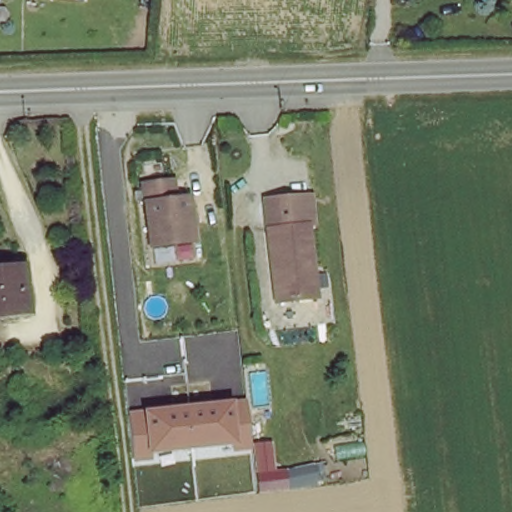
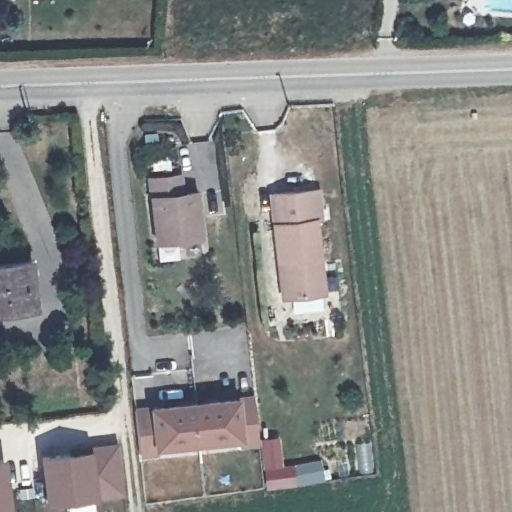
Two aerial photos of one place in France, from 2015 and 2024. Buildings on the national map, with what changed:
unchanged [(178,175),(181,194),(194,192),(198,236),(156,241),(148,178),(178,175)]
unchanged [(284,300),(276,227),(279,226),(276,195),(319,190),(322,222),(316,222),(324,295),(284,300)]
unchanged [(37,307),(0,310),(0,265),(33,262),(37,307)]
unchanged [(254,396),(259,440),(241,442),(240,436),(158,445),(159,451),(140,453),(136,409),(254,396)]
new [(295,485),(268,488),(266,468),(263,440),(278,438),(281,466),(293,465),(295,485)]
new [(120,441),(128,494),(74,502),(45,502),(40,455),(120,441)]
new [(10,508),(0,510),(0,456),(3,455),(10,508)]

